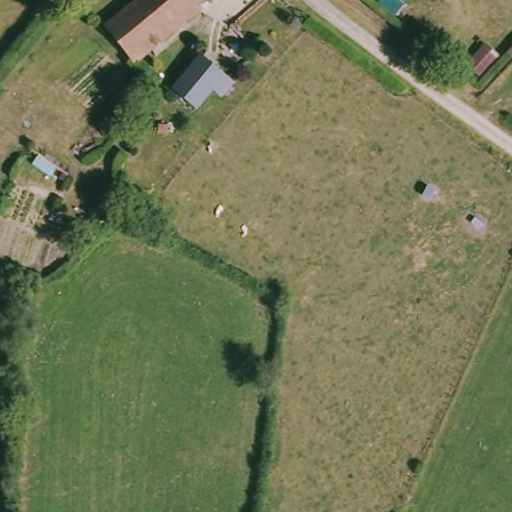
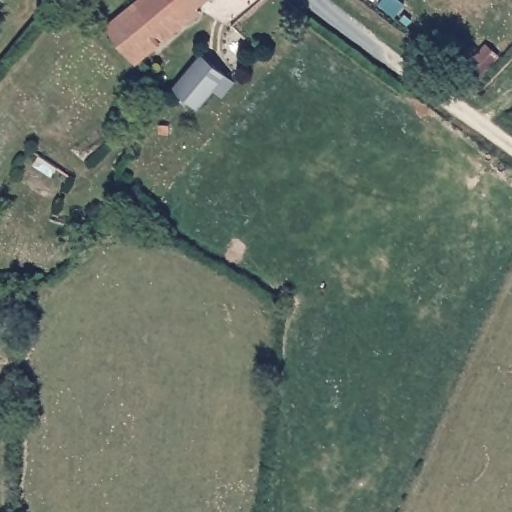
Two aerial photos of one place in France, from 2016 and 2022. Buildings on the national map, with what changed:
unchanged [(201,8),(205,14),(147,65),(116,29),(151,0),(211,0),(201,8)]
unchanged [(228,97),(215,88),(203,105),(176,84),(204,51),(241,79),(228,97)]

